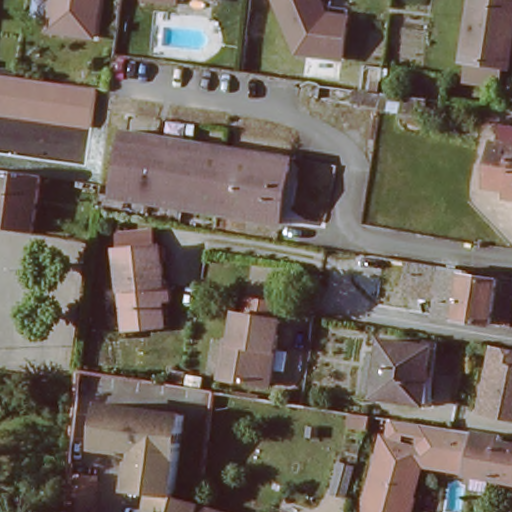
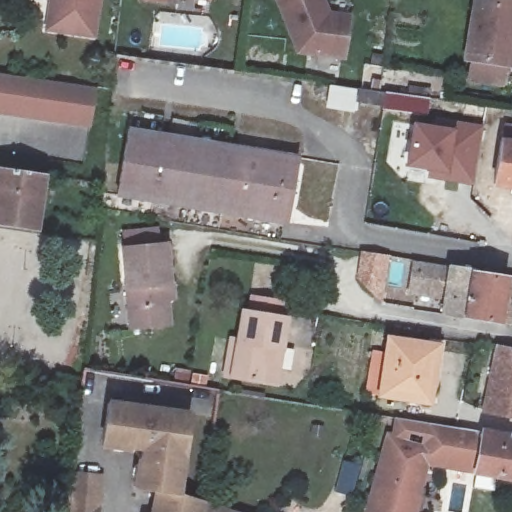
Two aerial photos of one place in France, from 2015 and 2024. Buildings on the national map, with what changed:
unchanged [(50,0),(102,0),(98,35),(47,29),(50,0)]
unchanged [(173,2),(161,0),(173,0),(173,2)]
unchanged [(345,55),(285,45),(284,22),(278,0),(323,0),(325,6),(353,11),(345,55)]
unchanged [(460,61),(468,0),(512,0),(512,30),(510,41),(507,67),(500,66),(460,61)]
unchanged [(98,90),(93,130),(0,117),(0,75),(98,90)]
unchanged [(437,92),(435,110),(388,104),(388,102),(362,99),(363,86),(390,90),(390,86),(437,92)]
new [(405,167),(413,122),(439,127),(440,118),(484,126),(474,187),(429,179),(430,171),(405,167)]
unchanged [(297,150),(289,218),(174,203),(172,215),(110,206),(111,192),(124,194),(131,129),(297,150)]
unchanged [(512,199),(490,195),(499,135),(512,137),(512,199)]
unchanged [(35,230),(0,224),(0,167),(45,174),(35,230)]
unchanged [(512,199),(512,208),(511,208),(512,199)]
unchanged [(160,302),(162,326),(124,328),(120,248),(164,245),(167,285),(168,301),(160,302)]
new [(362,279),(358,274),(362,251),(387,255),(383,283),(380,300),(362,279)]
unchanged [(479,274),(479,278),(512,282),(512,292),(507,327),(454,318),(460,271),(479,274)]
unchanged [(268,381),(223,375),(225,359),(228,337),(236,339),(240,312),(284,317),(280,348),(275,382),(268,381)]
unchanged [(434,346),(427,380),(435,381),(431,404),(382,395),(391,339),(434,346)]
unchanged [(496,344),(512,347),(512,415),(484,410),(496,344)]
unchanged [(169,406),(188,408),(180,476),(177,495),(154,489),(153,489),(130,487),(137,447),(129,446),(128,450),(99,446),(105,397),(169,406)]
unchanged [(358,417),(376,420),(373,433),(355,428),(358,417)]
unchanged [(476,473),(425,467),(427,461),(420,459),(425,443),(392,435),(395,419),(482,432),(476,473)]
unchanged [(420,459),(427,461),(413,512),(361,512),(360,511),(381,432),(425,443),(420,459)]
unchanged [(506,436),(506,442),(512,443),(512,479),(476,473),(482,432),(506,436)]
unchanged [(337,494),(345,462),(364,467),(355,499),(337,494)]
unchanged [(103,512),(69,512),(74,468),(107,471),(103,512)]
unchanged [(188,500),(191,486),(202,488),(200,503),(228,512),(149,512),(153,493),(188,500)]

